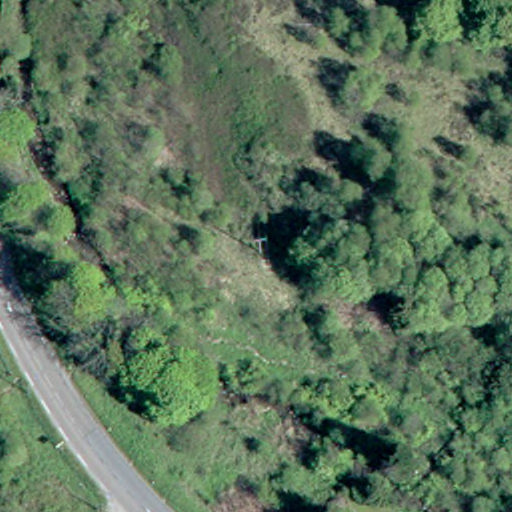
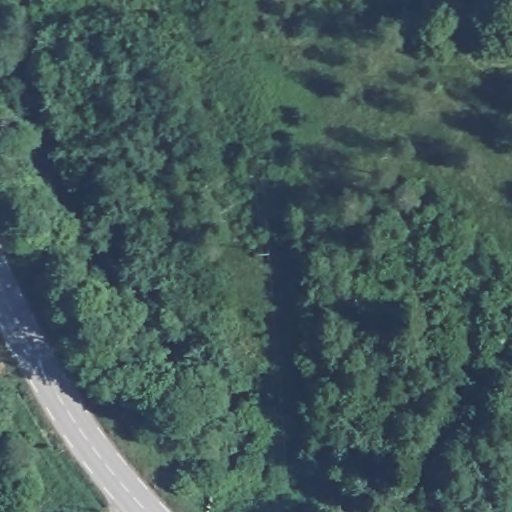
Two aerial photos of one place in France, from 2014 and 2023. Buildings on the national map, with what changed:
[]

